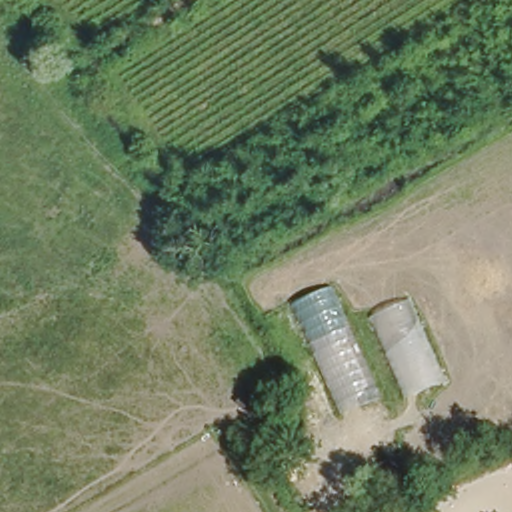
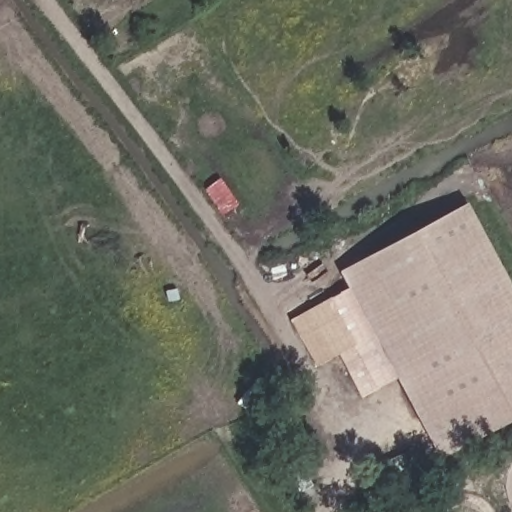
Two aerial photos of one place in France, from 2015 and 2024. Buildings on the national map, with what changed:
new [(467,202),(512,286),(512,421),(441,459),(340,271),(467,202)]
new [(360,397),(338,355),(315,366),(290,318),(348,287),(397,378),(360,397)]

